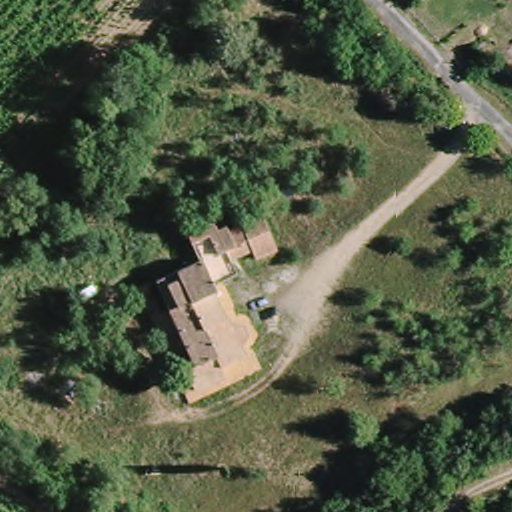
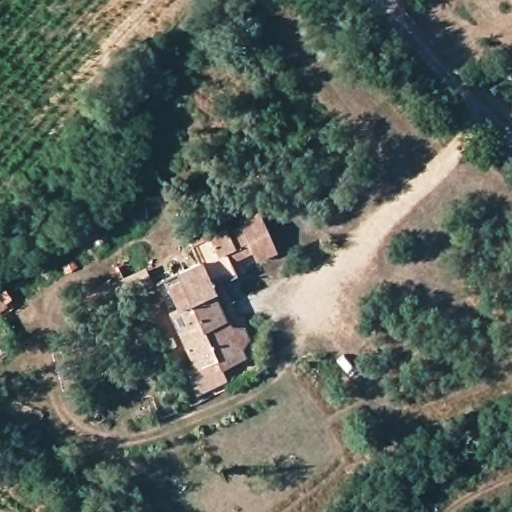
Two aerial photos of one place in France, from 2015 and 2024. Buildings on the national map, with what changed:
unchanged [(269,208),(267,220),(258,226),(268,246),(249,257),(241,247),(220,260),(228,274),(204,287),(223,322),(236,322),(241,333),(234,343),(238,354),(217,366),(222,375),(193,390),(183,370),(192,366),(150,282),(190,261),(176,233),(204,219),(208,228),(216,225),(218,230),(232,223),(231,218),(249,208),(253,209),(256,203),(264,199),(269,208)]

